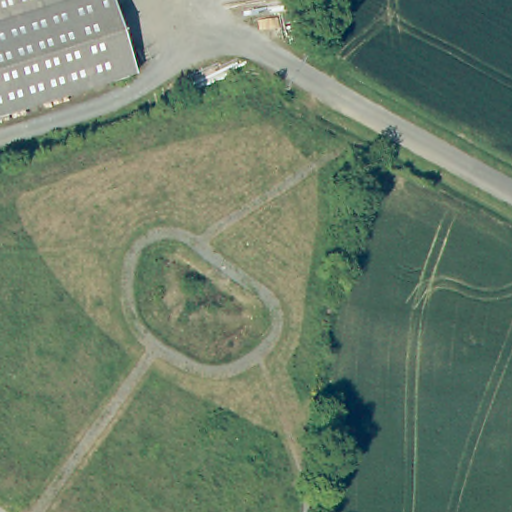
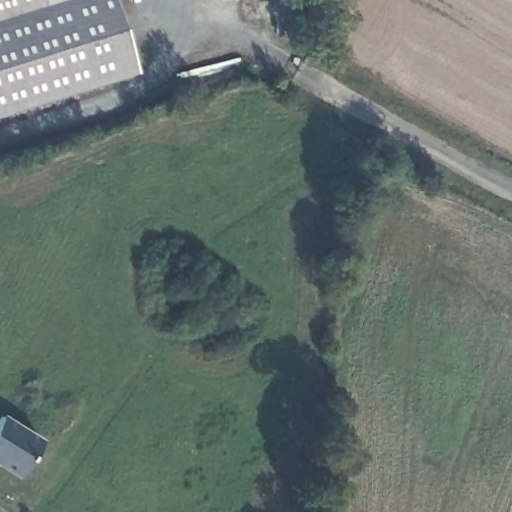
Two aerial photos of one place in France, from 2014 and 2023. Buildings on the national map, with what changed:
unchanged [(12,0),(16,12),(55,0),(112,0),(134,71),(0,112),(0,0),(12,0)]
unchanged [(12,0),(55,0),(16,12),(12,0)]
new [(41,440),(16,477),(0,467),(0,415),(41,440)]

